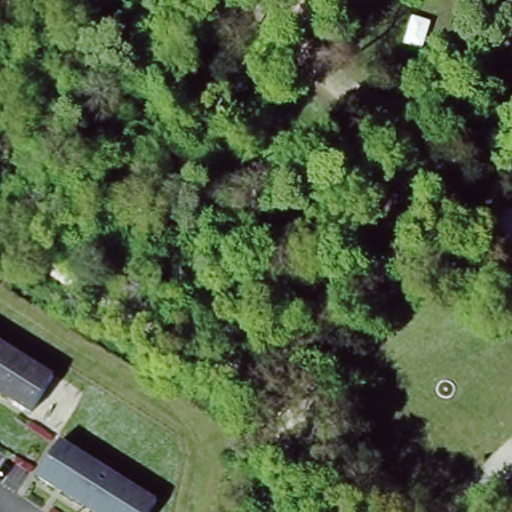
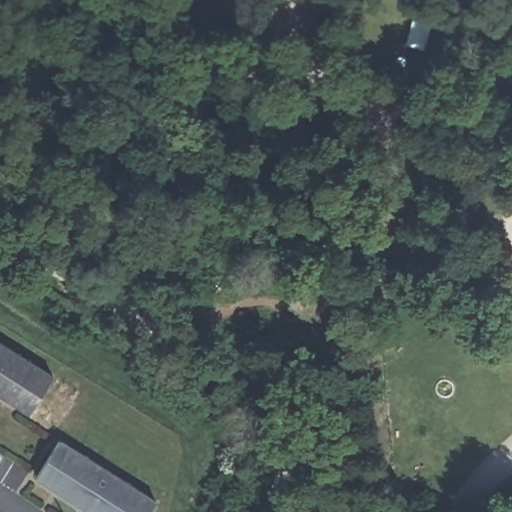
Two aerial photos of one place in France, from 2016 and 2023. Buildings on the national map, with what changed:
unchanged [(0,396),(0,346),(53,379),(31,415),(0,396)]
unchanged [(61,442),(157,503),(151,512),(91,512),(38,479),(61,442)]

